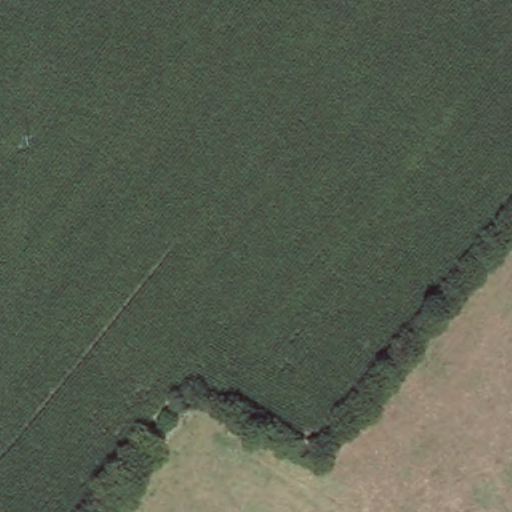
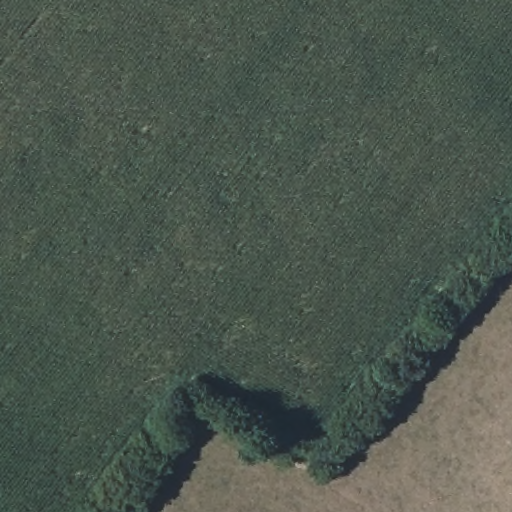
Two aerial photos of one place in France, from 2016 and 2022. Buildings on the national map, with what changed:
[]

